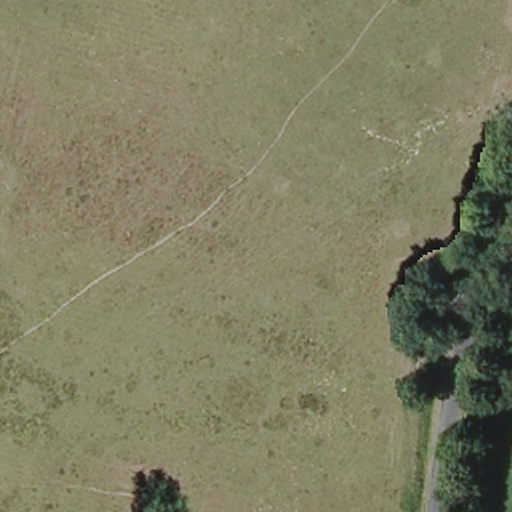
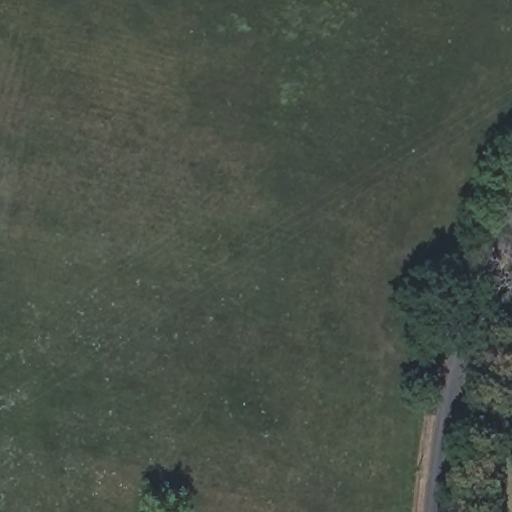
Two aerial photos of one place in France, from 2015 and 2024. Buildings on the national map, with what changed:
[]

